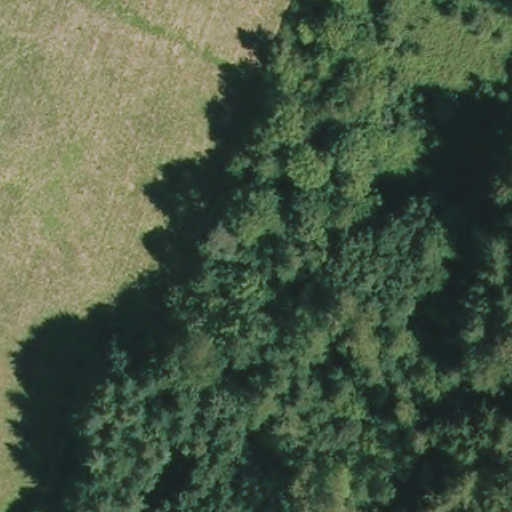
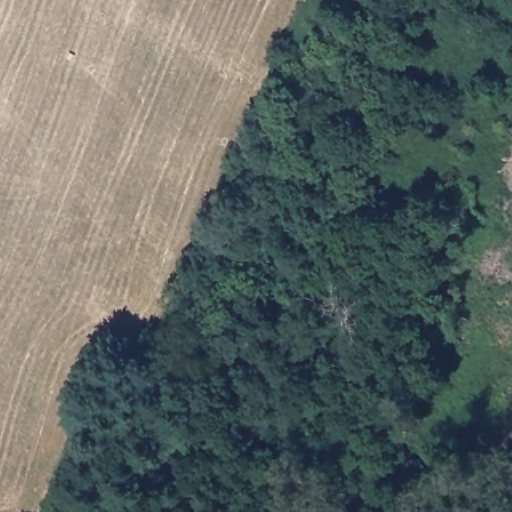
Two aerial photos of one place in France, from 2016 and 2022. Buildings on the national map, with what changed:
[]

